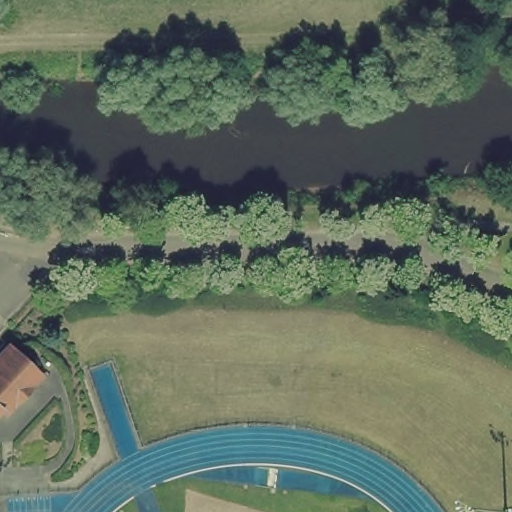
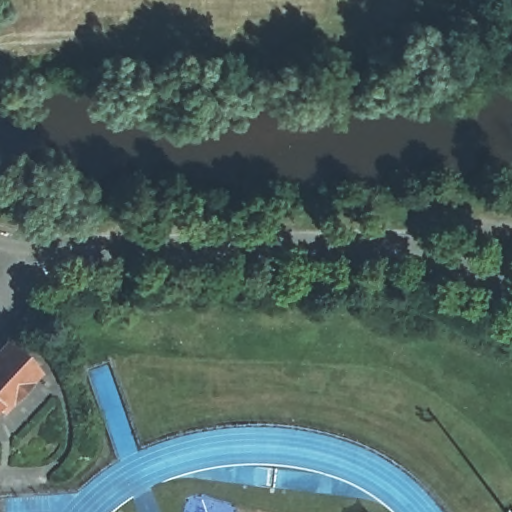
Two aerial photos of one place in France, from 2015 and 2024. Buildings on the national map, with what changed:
unchanged [(37,374),(1,412),(0,412),(0,349),(5,344),(37,374)]

